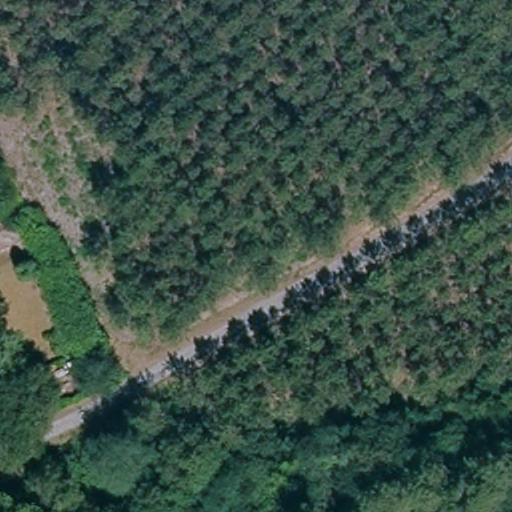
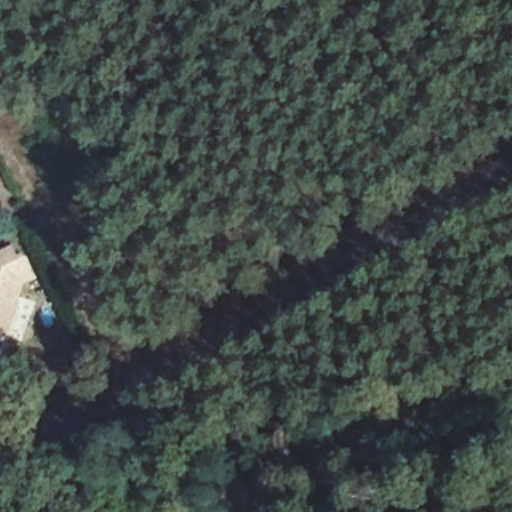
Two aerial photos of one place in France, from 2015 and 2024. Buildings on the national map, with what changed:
new [(17,245),(22,256),(29,252),(41,279),(29,284),(7,341),(5,340),(0,351),(0,252),(17,245)]

